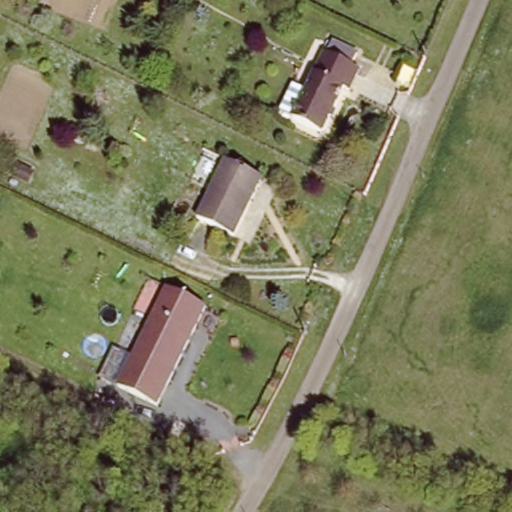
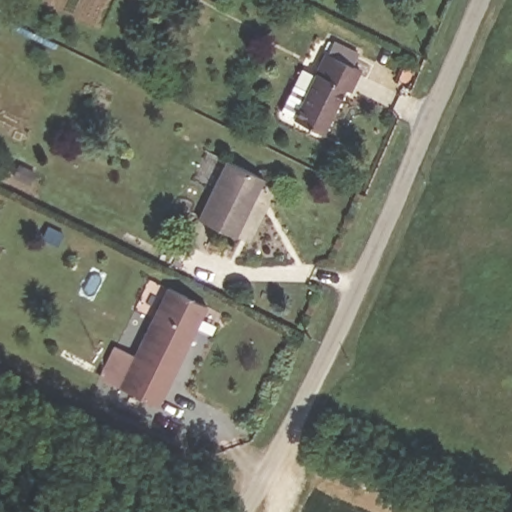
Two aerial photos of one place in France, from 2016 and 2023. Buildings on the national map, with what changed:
unchanged [(282,111),(294,85),(310,92),(326,55),(362,72),(353,93),(346,90),(327,132),(298,119),(282,111)]
unchanged [(234,235),(199,217),(226,160),(263,178),(234,235)]
unchanged [(165,290),(204,310),(158,405),(118,385),(165,290)]

